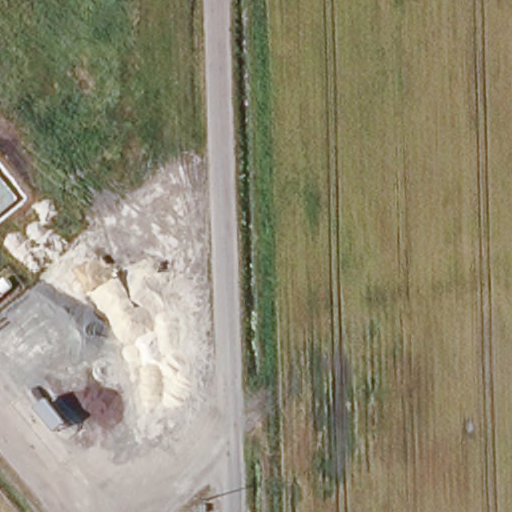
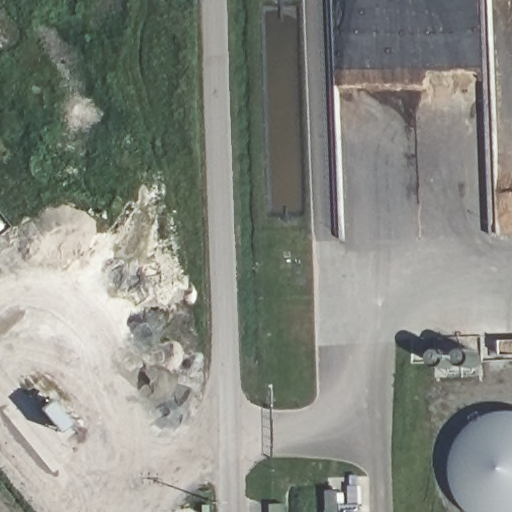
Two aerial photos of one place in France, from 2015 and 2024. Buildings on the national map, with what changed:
new [(512,512),(470,512),(468,510),(457,495),(452,471),(454,451),(463,434),(479,418),(502,411),(512,411),(512,512)]

